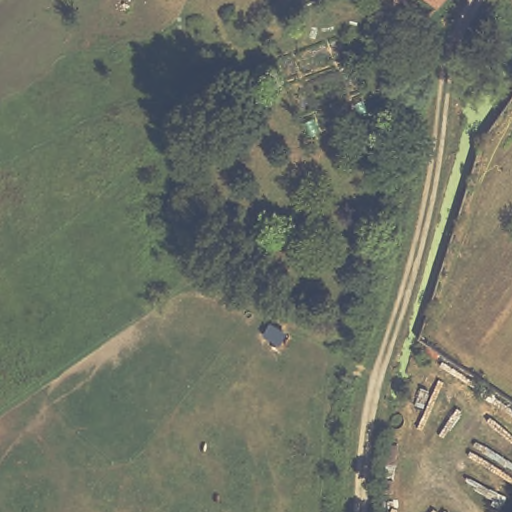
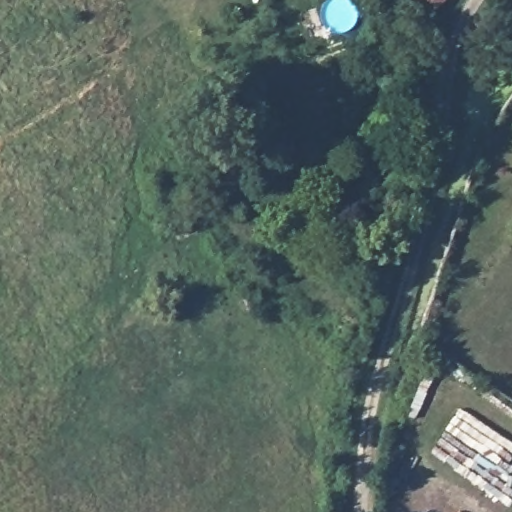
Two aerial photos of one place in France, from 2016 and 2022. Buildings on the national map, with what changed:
unchanged [(421,19),(403,0),(440,0),(421,19)]

